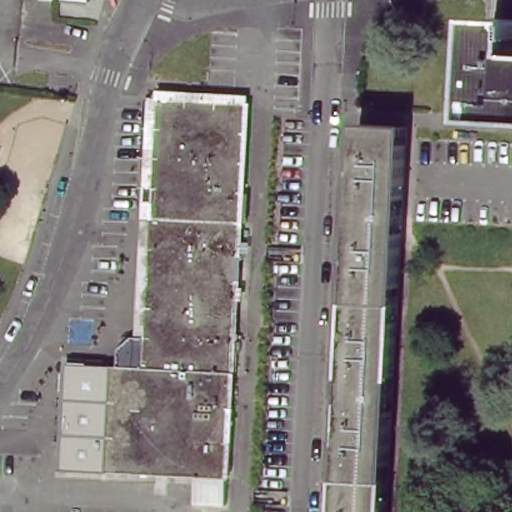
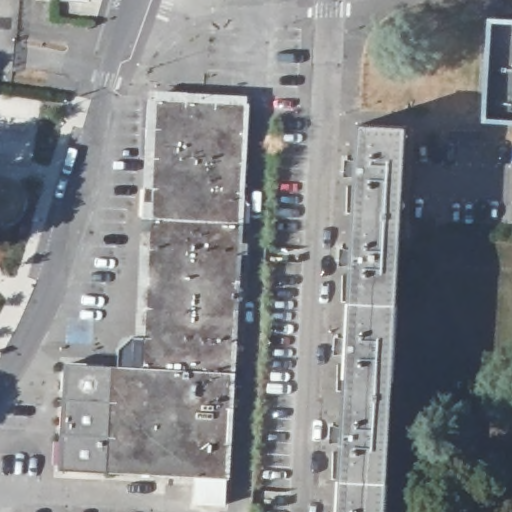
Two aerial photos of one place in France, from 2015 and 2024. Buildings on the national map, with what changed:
unchanged [(492,19),(512,20),(512,115),(487,114),(492,19)]
unchanged [(244,95),(232,366),(152,366),(155,297),(144,297),(155,92),(244,95)]
unchanged [(339,449),(329,450),(330,435),(340,437),(344,361),(334,362),(335,346),(344,349),(349,273),(339,274),(340,259),(349,261),(354,181),(344,182),(345,165),(355,168),(357,129),(405,132),(384,512),(336,512),(339,449)]
unchanged [(152,372),(152,366),(232,366),(227,474),(225,501),(194,499),(196,473),(60,468),(67,368),(152,372)]

